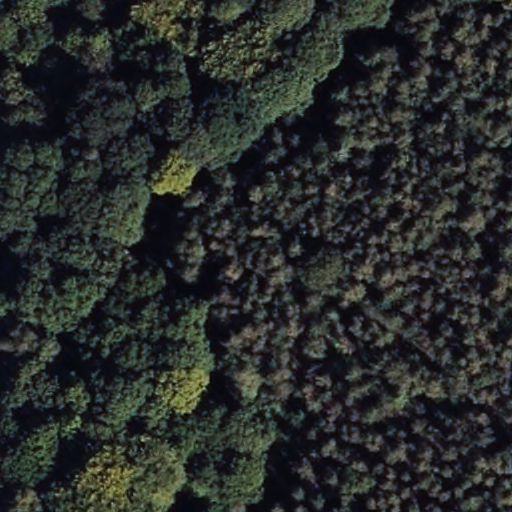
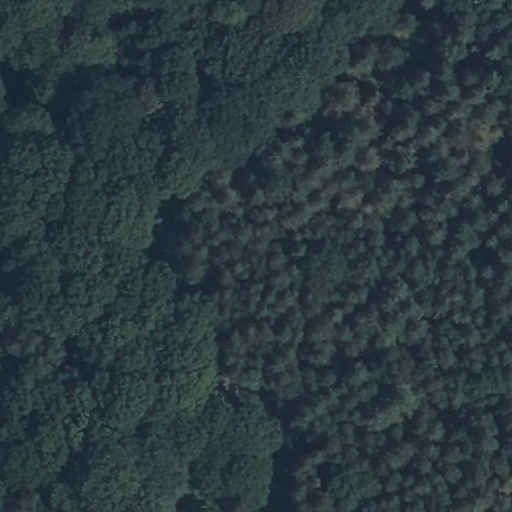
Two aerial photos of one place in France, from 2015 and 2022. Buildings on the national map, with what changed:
[]

